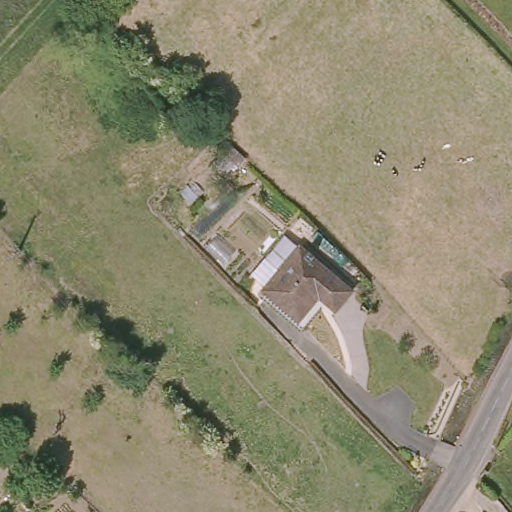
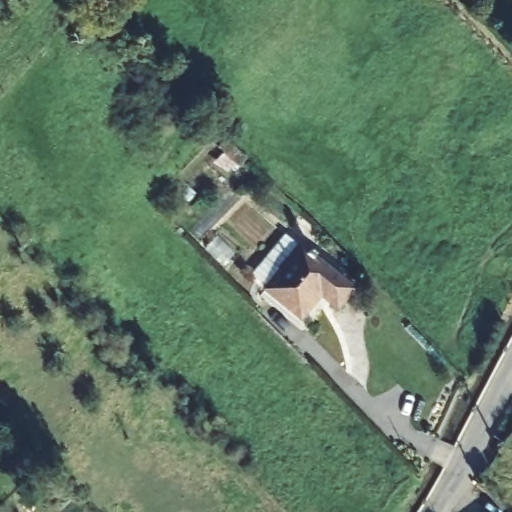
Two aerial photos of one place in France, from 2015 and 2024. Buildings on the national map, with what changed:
unchanged [(303,246),(318,258),(283,301),(267,289),(303,246)]
unchanged [(370,301),(354,319),(337,306),(317,330),(283,302),(283,301),(318,258),(370,301)]

